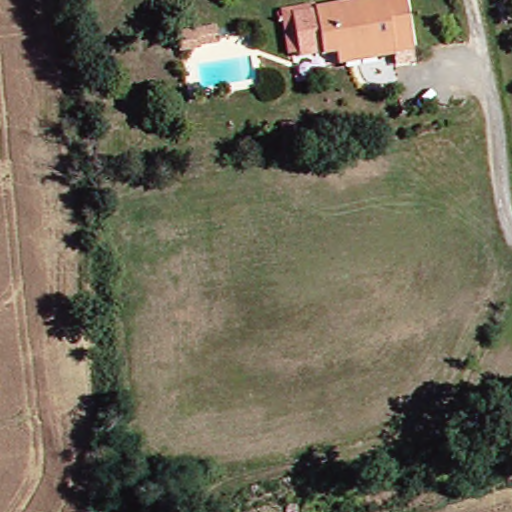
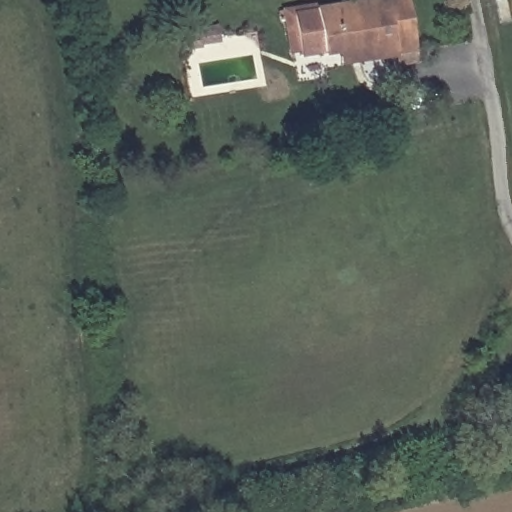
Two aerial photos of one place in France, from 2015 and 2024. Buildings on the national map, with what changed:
unchanged [(302,6),(338,0),(394,0),(402,45),(324,58),(311,60),(302,6)]
unchanged [(203,47),(226,44),(227,58),(206,62),(185,66),(183,51),(203,47)]
unchanged [(404,58),(325,72),(324,58),(402,45),(404,58)]

